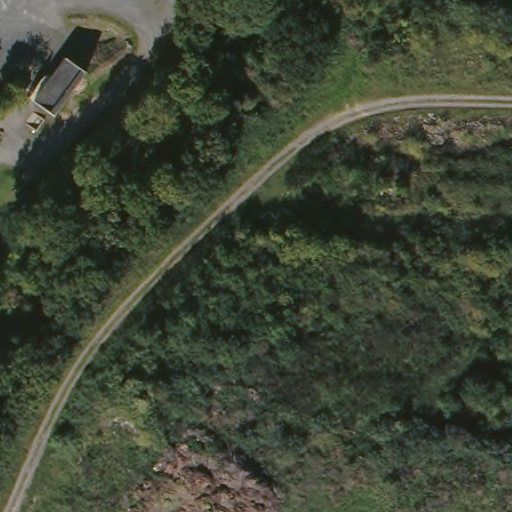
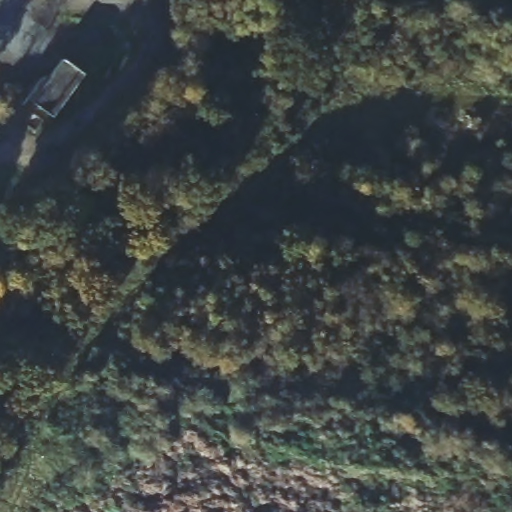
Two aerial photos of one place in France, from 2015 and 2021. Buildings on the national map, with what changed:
unchanged [(95,72),(62,115),(42,96),(72,57),(95,72)]

